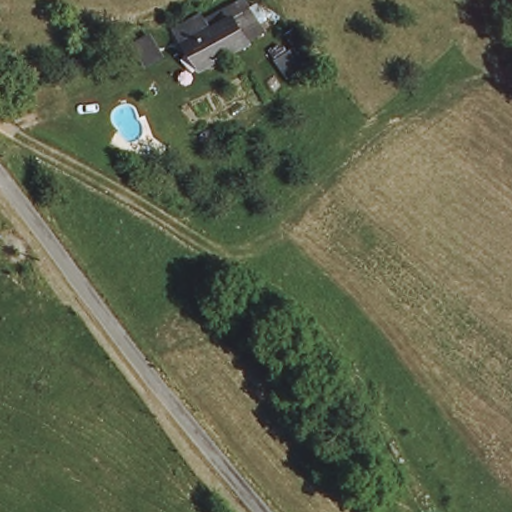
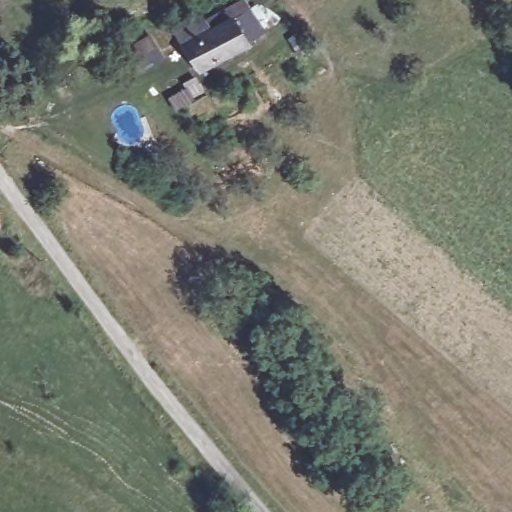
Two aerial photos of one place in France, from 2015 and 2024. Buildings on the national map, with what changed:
unchanged [(246,46),(205,68),(192,40),(183,44),(175,28),(205,16),(211,30),(233,20),(246,46)]

